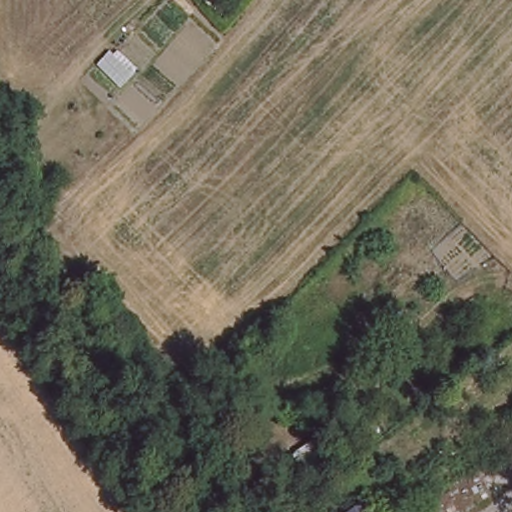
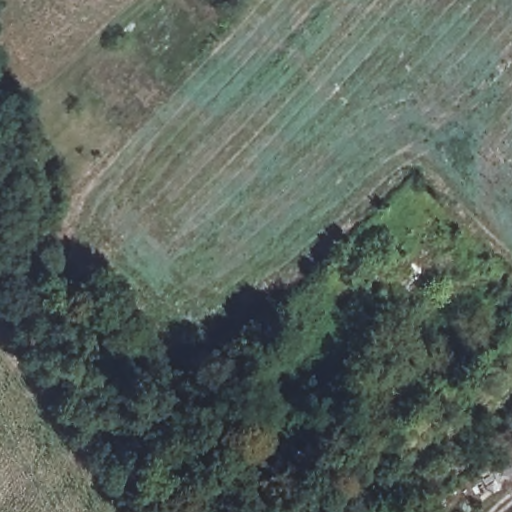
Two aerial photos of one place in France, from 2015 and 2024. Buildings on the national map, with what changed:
unchanged [(377,512),(348,512),(369,496),(377,512)]

